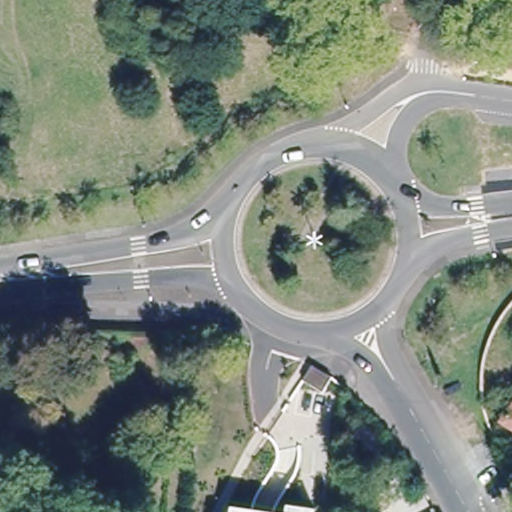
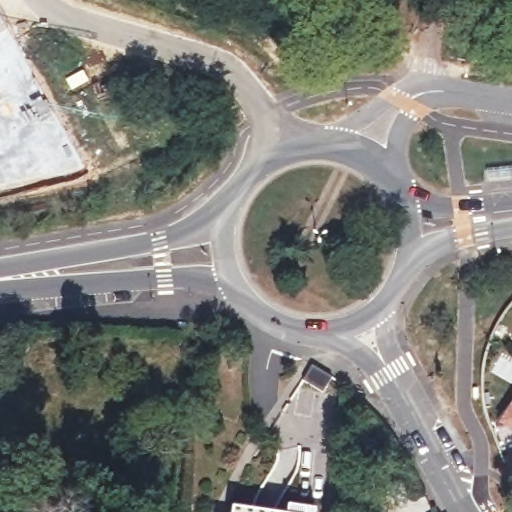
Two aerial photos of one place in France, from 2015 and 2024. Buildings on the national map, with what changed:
unchanged [(498,420),(512,395),(512,428),(498,420)]
unchanged [(315,508),(315,512),(285,512),(286,504),(315,508)]
unchanged [(230,512),(231,506),(274,512),(230,512)]

